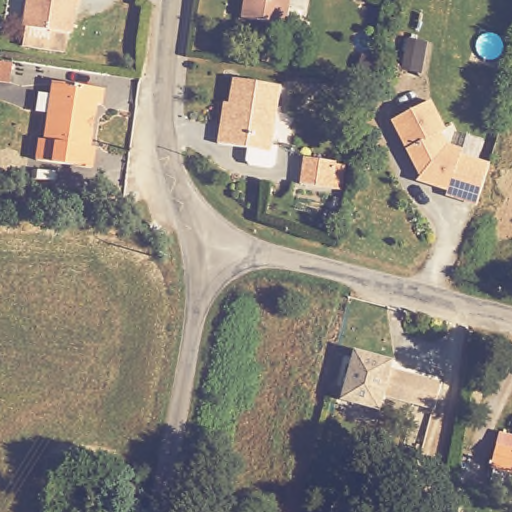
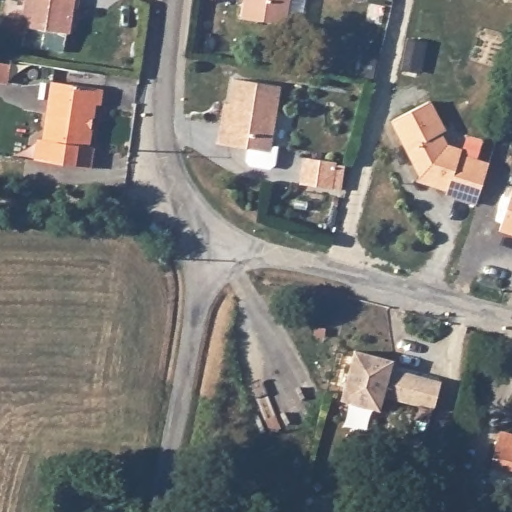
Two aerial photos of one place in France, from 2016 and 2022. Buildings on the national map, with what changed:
unchanged [(26,18),(29,0),(76,0),(71,25),(69,25),(67,42),(26,35),(29,19),(26,18)]
unchanged [(296,0),(292,29),(249,21),(252,0),(296,0)]
unchanged [(407,57),(422,60),(414,90),(399,86),(407,57)]
unchanged [(0,84),(0,68),(13,70),(10,86),(0,84)]
unchanged [(281,89),(272,153),(219,145),(222,125),(225,105),(230,105),(234,80),(281,89)]
unchanged [(36,139),(41,140),(51,83),(100,91),(98,105),(94,104),(87,148),(91,149),(88,171),(33,160),(36,139)]
unchanged [(425,171),(397,119),(430,100),(453,141),(468,146),(467,152),(494,161),(482,200),(454,191),(456,186),(435,180),(422,175),(425,171)]
unchanged [(305,171),(338,177),(333,204),(300,197),(305,171)]
new [(512,191),(512,235),(499,231),(512,191)]
unchanged [(418,370),(415,378),(464,395),(456,419),(444,415),(444,416),(407,403),(402,417),(364,406),(380,357),(418,370)]
unchanged [(499,475),(507,440),(512,442),(512,478),(499,475)]

